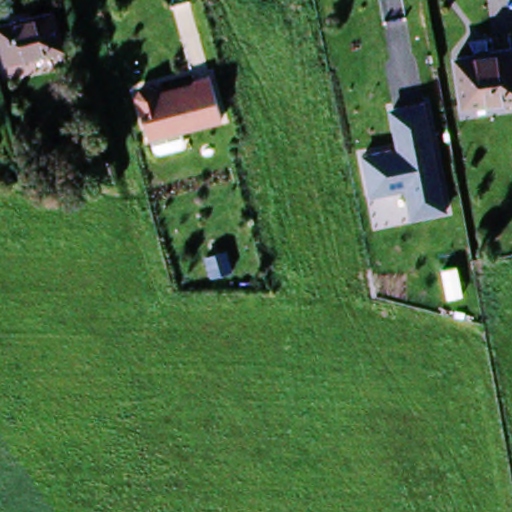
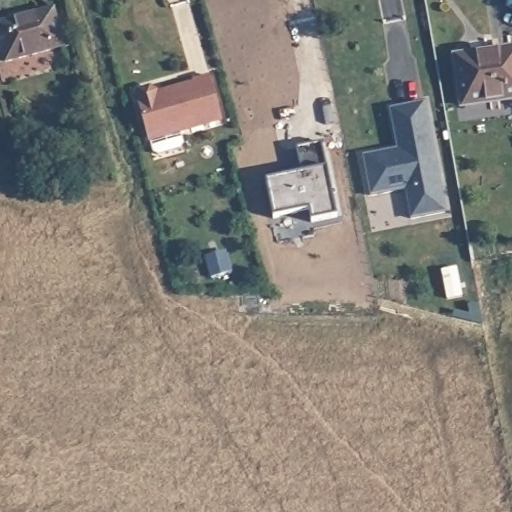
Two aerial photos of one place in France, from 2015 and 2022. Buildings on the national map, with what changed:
unchanged [(6,50),(1,51),(0,47),(0,23),(56,9),(65,46),(9,60),(6,50)]
unchanged [(512,45),(512,95),(462,101),(455,56),(487,51),(487,49),(512,45)]
unchanged [(209,71),(224,114),(150,137),(139,94),(209,71)]
unchanged [(394,144),(390,107),(424,100),(445,215),(412,217),(406,187),(372,194),(364,149),(394,144)]
new [(150,141),(182,132),(185,144),(182,150),(159,157),(153,154),(150,141)]
new [(323,145),(337,217),(312,222),(310,211),(274,219),(266,182),(302,175),(297,150),(323,145)]

